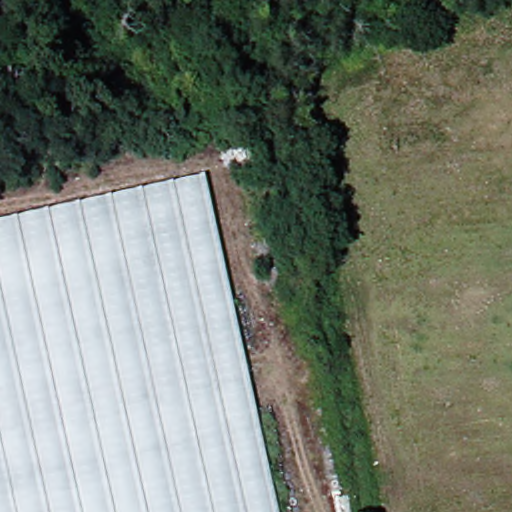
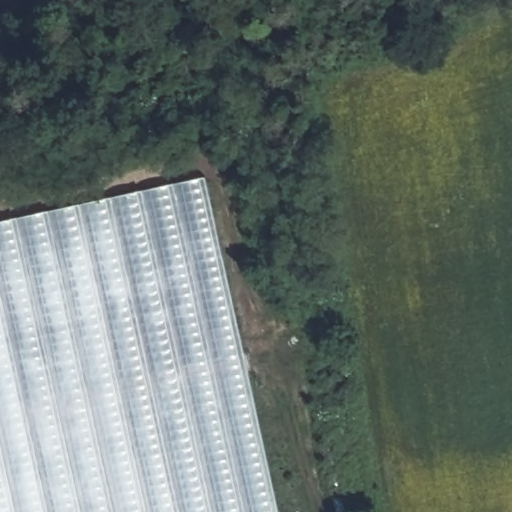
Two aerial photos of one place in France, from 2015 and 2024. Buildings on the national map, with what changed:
unchanged [(210,177),(288,512),(0,512),(0,225),(210,177)]

